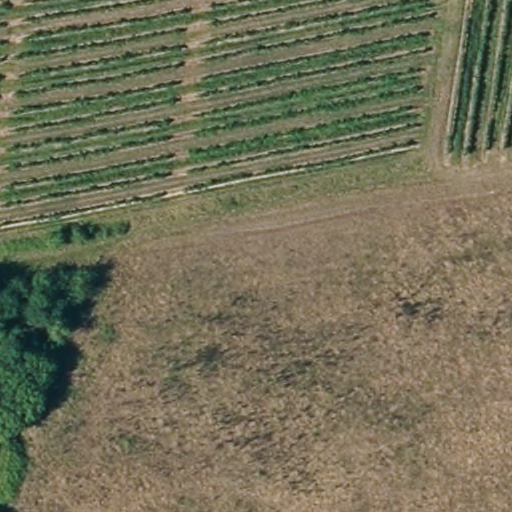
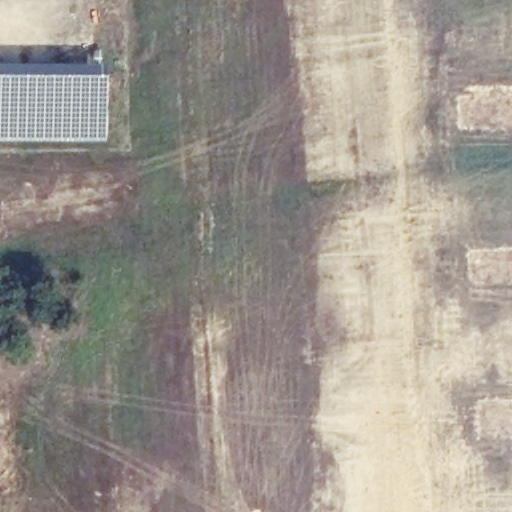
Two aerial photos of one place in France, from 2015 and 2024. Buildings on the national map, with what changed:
new [(0,140),(0,62),(108,63),(105,141),(0,140)]
new [(464,399),(512,398),(512,434),(466,434),(464,399)]

